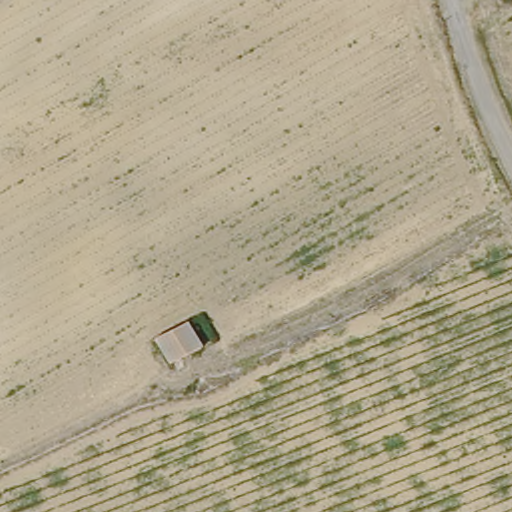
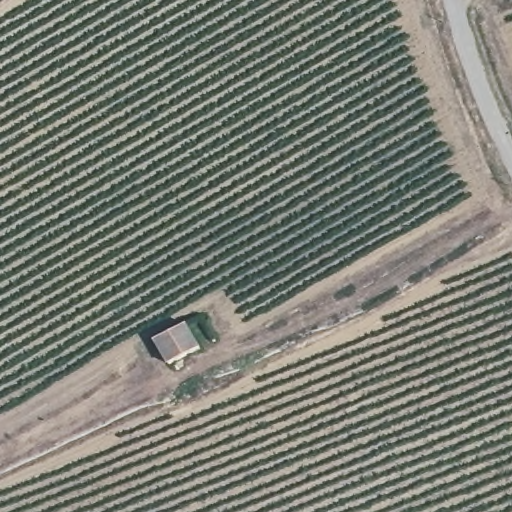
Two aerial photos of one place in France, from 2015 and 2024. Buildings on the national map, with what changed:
unchanged [(150,345),(197,322),(212,347),(165,370),(150,345)]

